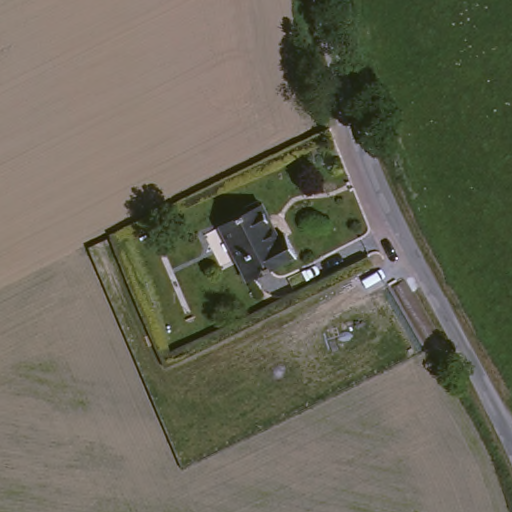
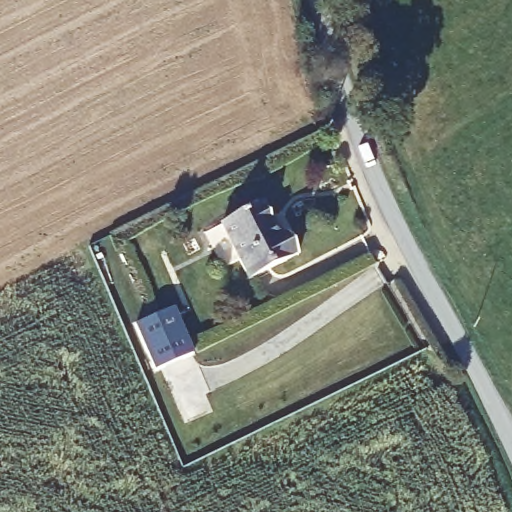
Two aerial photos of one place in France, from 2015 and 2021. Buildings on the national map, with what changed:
unchanged [(265,207),(281,239),(289,236),(300,258),(250,284),(222,229),(265,207)]
new [(155,371),(136,327),(175,309),(193,353),(155,371)]

